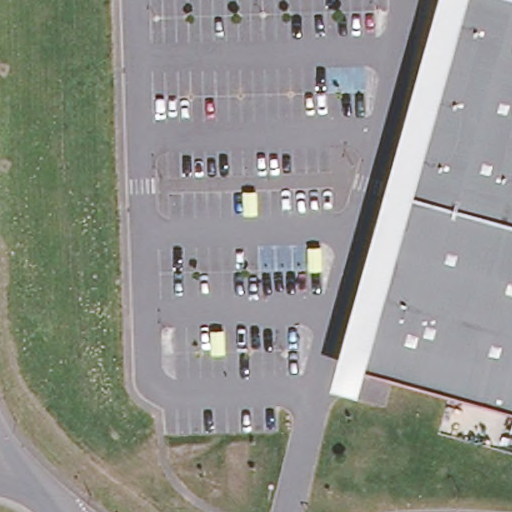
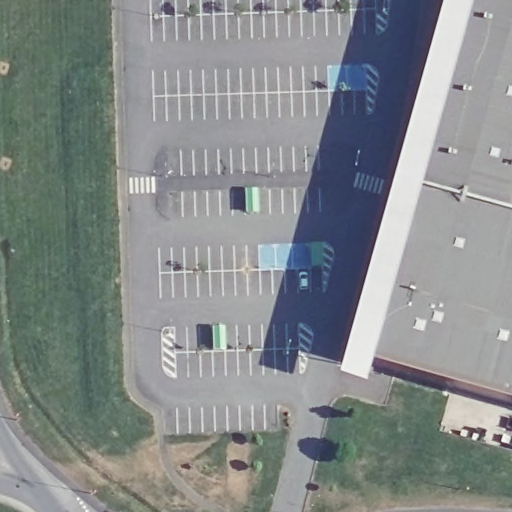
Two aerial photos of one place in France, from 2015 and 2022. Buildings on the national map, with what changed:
unchanged [(367,363),(360,388),(333,380),(438,0),(512,0),(512,403),(367,363)]

